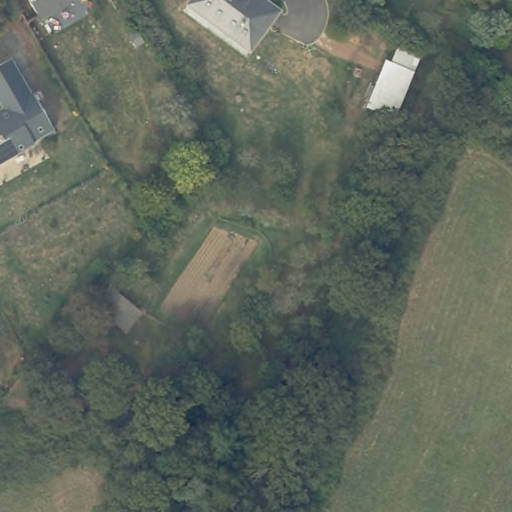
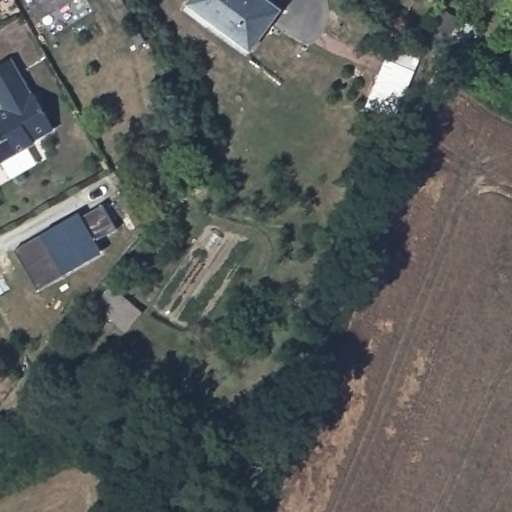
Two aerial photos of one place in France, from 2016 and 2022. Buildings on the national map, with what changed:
unchanged [(39,14),(31,0),(67,0),(39,14)]
unchanged [(281,10),(250,51),(187,4),(190,0),(268,0),(281,10)]
unchanged [(145,41),(135,47),(127,34),(137,29),(145,41)]
unchanged [(15,109),(0,82),(0,71),(20,59),(41,95),(43,93),(64,129),(44,140),(42,138),(2,162),(0,158),(0,121),(2,120),(0,118),(11,112),(15,109)]
unchanged [(413,71),(394,118),(367,107),(386,59),(413,71)]
new [(81,212),(82,215),(104,204),(116,229),(95,239),(102,252),(63,273),(37,289),(16,250),(41,234),(81,212)]
unchanged [(142,312),(125,331),(95,305),(111,286),(142,312)]

